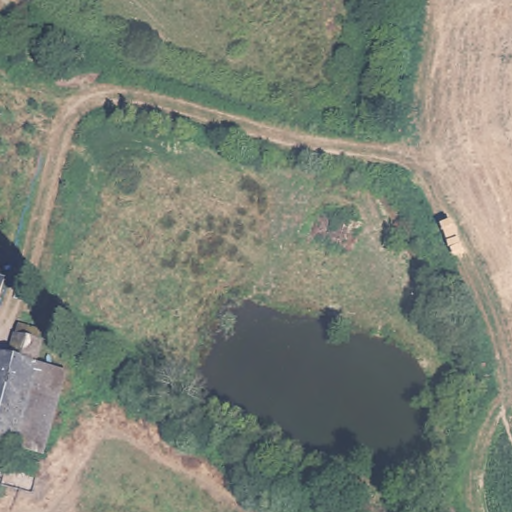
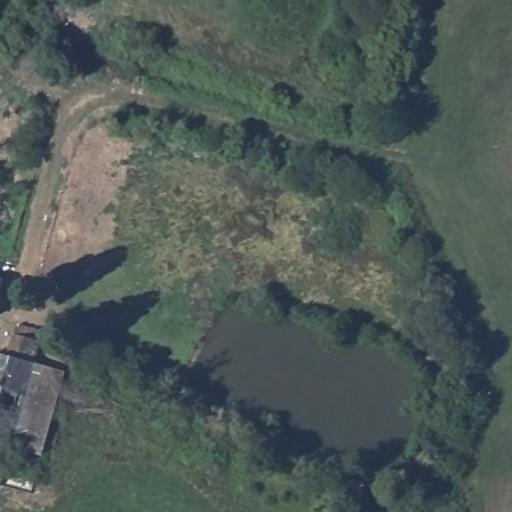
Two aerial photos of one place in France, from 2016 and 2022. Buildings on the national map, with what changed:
unchanged [(3,293),(0,306),(0,293),(3,293)]
unchanged [(10,366),(18,334),(43,339),(35,371),(65,382),(47,466),(0,454),(0,364),(10,366)]

